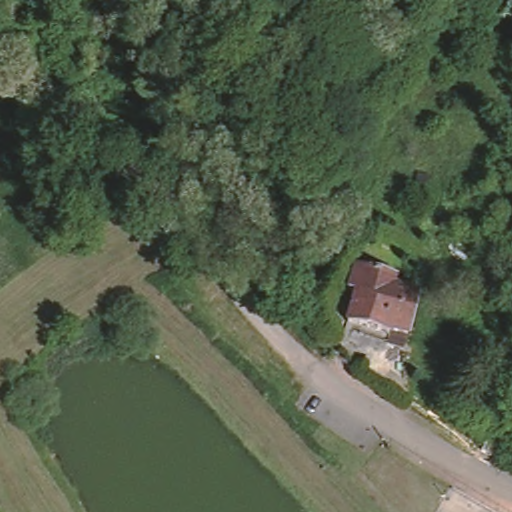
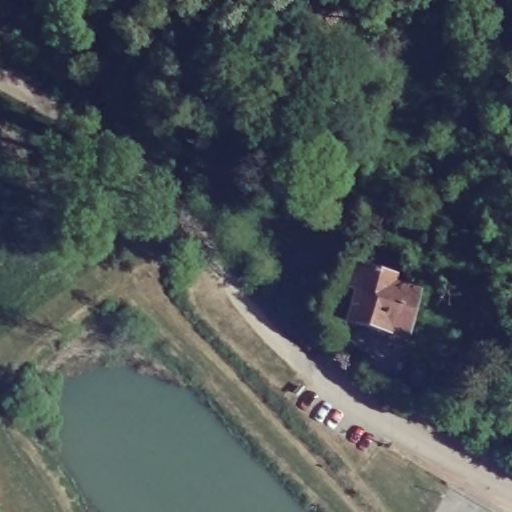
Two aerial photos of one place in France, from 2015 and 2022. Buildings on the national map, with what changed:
unchanged [(355,289),(349,288),(357,262),(395,276),(393,283),(417,291),(407,333),(390,327),(387,334),(346,320),(355,289)]

